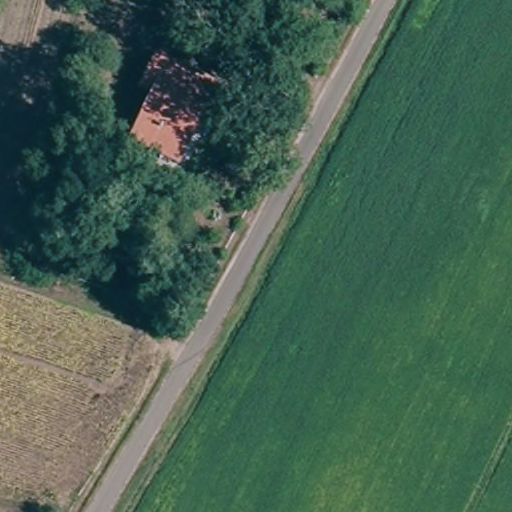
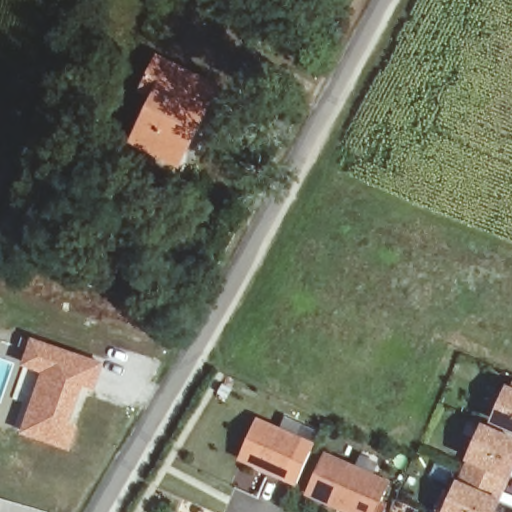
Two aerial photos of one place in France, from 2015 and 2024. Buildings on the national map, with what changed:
unchanged [(151,151),(133,142),(156,95),(143,89),(158,59),(216,88),(181,158),(178,164),(151,151)]
new [(40,373),(18,363),(29,336),(103,362),(93,391),(84,388),(71,422),(78,425),(68,451),(18,432),(40,373)]
new [(506,385),(512,387),(512,432),(490,422),(506,385)]
new [(257,421),(299,440),(282,478),(240,460),(257,421)]
new [(503,501),(499,512),(445,512),(458,481),(467,461),(484,425),(512,438),(512,477),(510,480),(503,501)]
new [(387,483),(375,512),(345,512),(308,496),(326,456),(387,483)]

